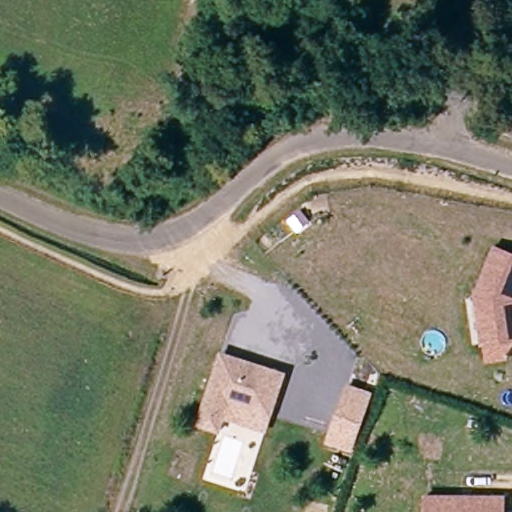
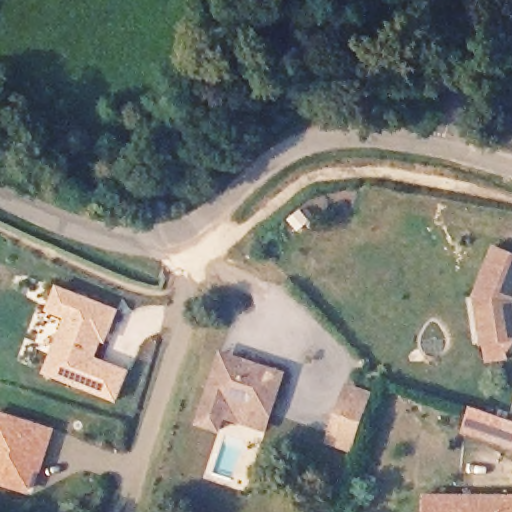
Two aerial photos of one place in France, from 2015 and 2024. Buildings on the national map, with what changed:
unchanged [(486,364),(483,344),(481,330),(476,296),(496,247),(512,254),(512,344),(506,354),(508,360),(486,364)]
new [(119,309),(107,341),(102,339),(96,355),(129,369),(117,402),(42,372),(65,318),(45,310),(56,284),(119,309)]
unchanged [(266,432),(224,418),(220,430),(199,423),(219,363),(223,352),(236,356),(285,373),(274,405),(271,414),(266,432)]
unchanged [(374,392),(352,452),(325,443),(348,383),(374,392)]
new [(512,449),(462,431),(471,405),(512,421),(512,449)]
new [(0,485),(0,410),(56,427),(43,471),(37,470),(32,485),(28,494),(0,485)]
unchanged [(504,497),(512,497),(512,512),(425,512),(426,496),(504,497)]

